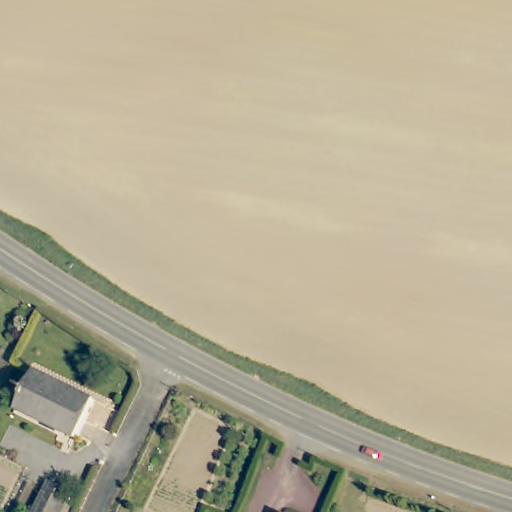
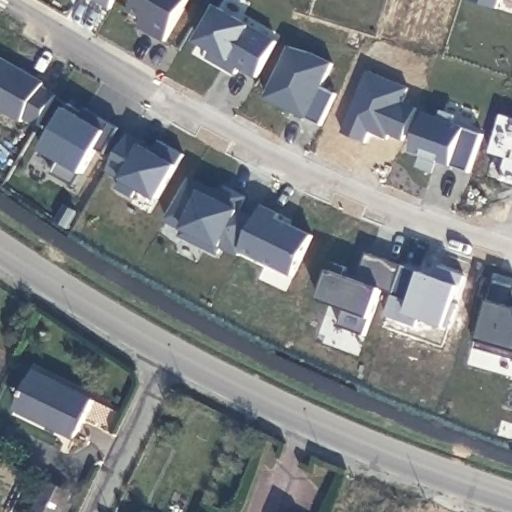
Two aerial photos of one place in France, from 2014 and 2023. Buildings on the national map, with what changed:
new [(97,0),(114,0),(110,8),(97,0)]
new [(141,27),(145,17),(131,9),(136,0),(188,0),(165,42),(141,27)]
new [(472,2),(472,0),(501,0),(498,11),(472,2)]
new [(241,71),(238,77),(216,64),(220,57),(200,45),(219,11),(278,44),(258,79),(241,71)]
new [(266,100),(280,71),(291,48),(312,55),(334,66),(322,89),(337,96),(321,127),(268,101),(266,100)]
new [(22,118),(20,122),(0,110),(0,57),(45,82),(42,86),(55,94),(37,126),(22,118)]
new [(105,153),(98,147),(82,174),(74,185),(54,172),(61,161),(41,150),(67,106),(83,116),(87,107),(122,127),(105,153)]
new [(156,150),(160,143),(184,157),(158,203),(139,191),(134,200),(117,190),(122,182),(108,173),(130,135),(156,150)]
new [(225,198),(228,191),(246,199),(239,212),(257,221),(239,257),(222,249),(219,255),(183,238),(186,231),(166,221),(190,181),(225,198)]
new [(280,216),(278,221),(313,238),(294,278),(242,253),(264,208),(280,216)]
new [(394,296),(382,292),(365,338),(339,329),(345,312),(320,302),(333,265),(347,269),(344,279),(358,284),(368,255),(404,268),(394,296)]
new [(435,279),(433,284),(439,269),(464,278),(454,305),(458,306),(449,330),(421,320),(418,329),(386,318),(404,268),(424,275),(435,279)]
new [(346,274),(360,280),(358,284),(344,279),(346,274)]
new [(497,281),(512,286),(512,361),(477,351),(497,281)]
unchanged [(1,342),(0,344),(0,342),(1,342)]
unchanged [(92,400),(76,438),(19,411),(37,373),(92,400)]

